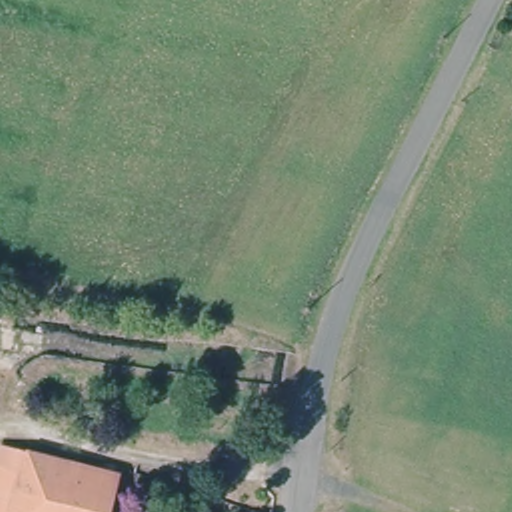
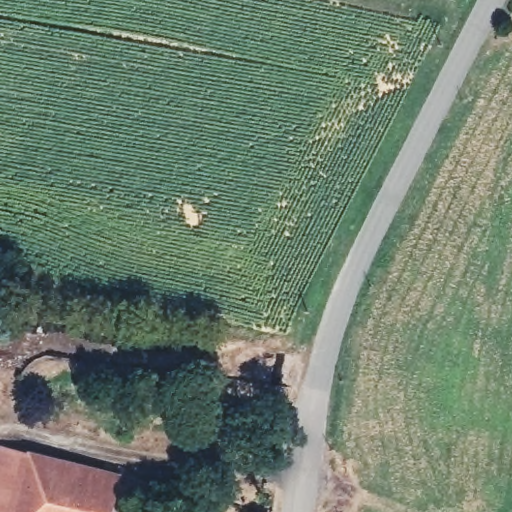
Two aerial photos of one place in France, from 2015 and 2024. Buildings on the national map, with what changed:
unchanged [(0,455),(1,447),(38,457),(118,478),(110,512),(0,512),(0,455)]

